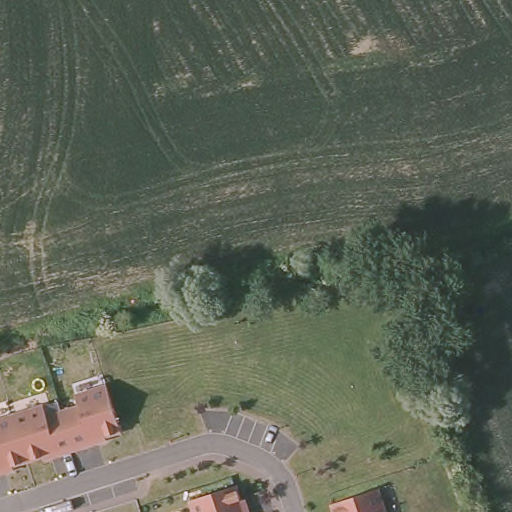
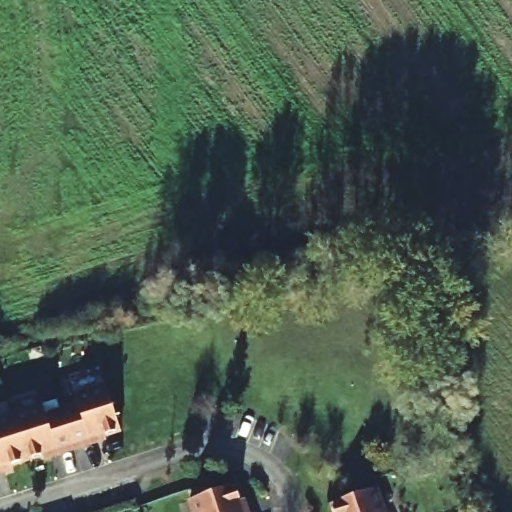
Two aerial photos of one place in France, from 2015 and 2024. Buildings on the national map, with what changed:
unchanged [(47,413),(78,402),(74,392),(107,382),(122,432),(107,436),(108,441),(109,441),(45,460),(44,456),(13,466),(15,471),(0,476),(0,416),(44,402),(47,413)]
unchanged [(237,482),(242,497),(244,499),(247,497),(252,512),(192,512),(188,500),(237,482)]
unchanged [(335,512),(332,503),(381,486),(389,512),(335,512)]

